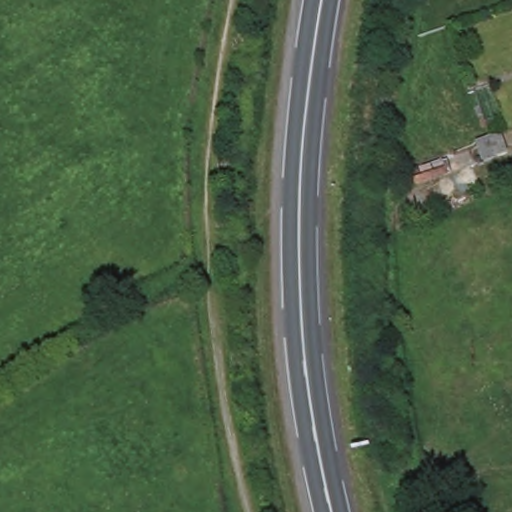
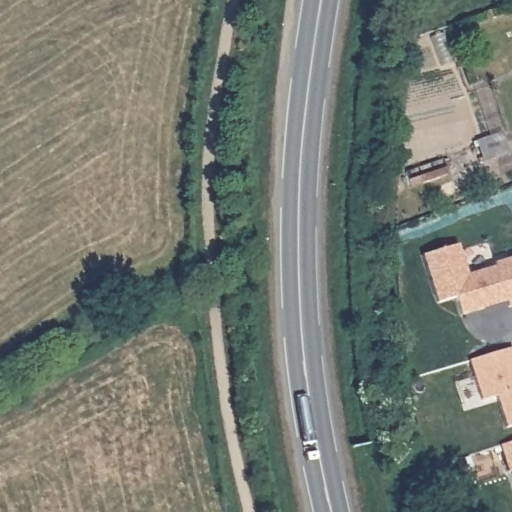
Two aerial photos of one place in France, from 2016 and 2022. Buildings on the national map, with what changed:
new [(507,307),(506,302),(460,315),(455,299),(437,304),(423,255),(459,244),(468,275),(496,265),(495,263),(512,257),(512,305),(507,307)]
new [(505,428),(496,397),(481,400),(470,361),(512,348),(512,425),(505,428)]
new [(509,471),(501,445),(512,441),(512,470),(509,471)]

